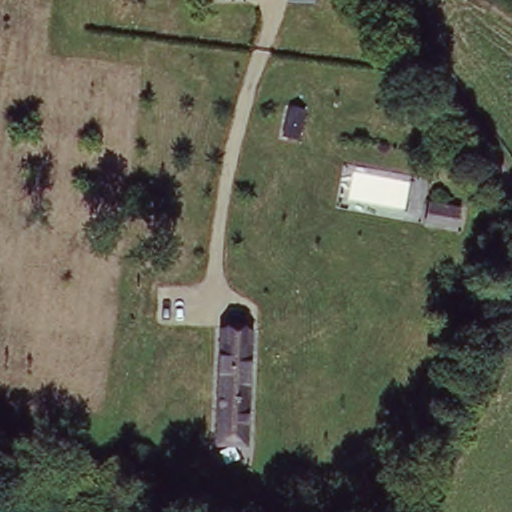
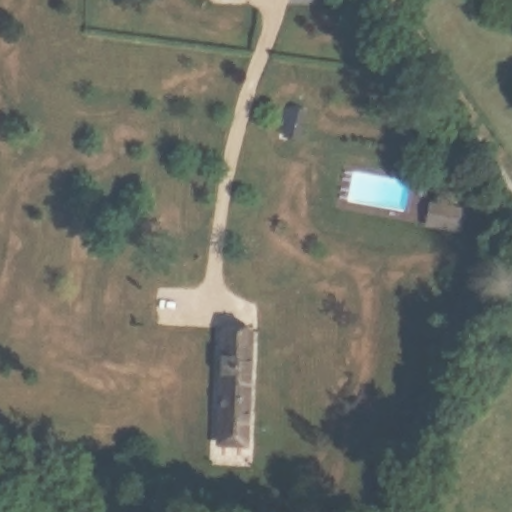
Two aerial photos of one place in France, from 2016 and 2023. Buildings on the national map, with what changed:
unchanged [(315,85),(320,126),(299,129),(294,88),(315,85)]
unchanged [(462,232),(423,224),(428,194),(467,202),(462,232)]
unchanged [(214,451),(216,324),(254,324),(252,451),(214,451)]

